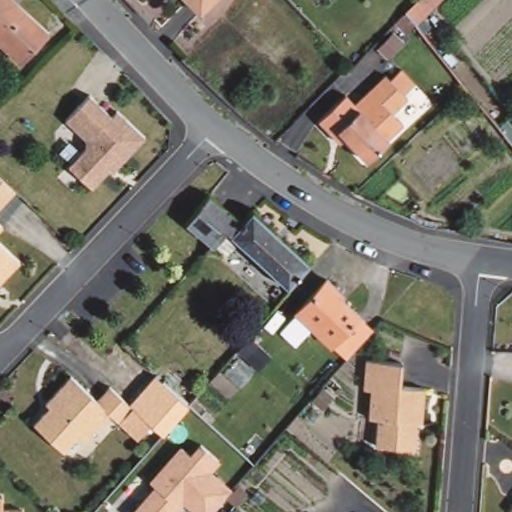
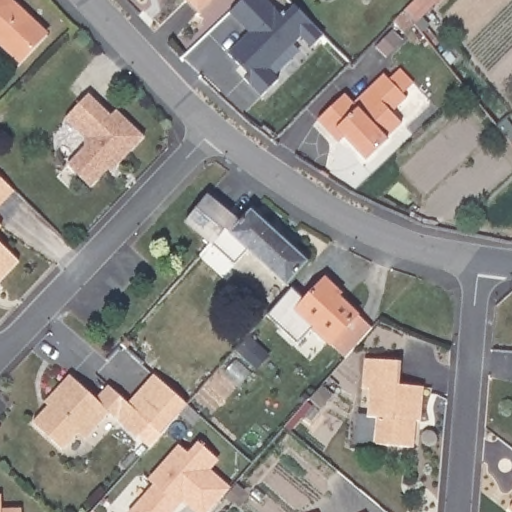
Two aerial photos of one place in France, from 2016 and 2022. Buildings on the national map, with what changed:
unchanged [(12,0),(46,32),(20,59),(0,40),(0,0),(12,0)]
unchanged [(189,0),(212,0),(200,12),(189,0)]
new [(250,34),(230,14),(244,0),(266,0),(284,19),(296,7),(312,25),(325,37),(312,50),(302,39),(269,71),(280,82),(262,98),(245,80),(237,72),(242,68),(229,55),(250,34)]
unchanged [(422,16),(413,7),(420,0),(429,0),(432,5),(422,16)]
unchanged [(335,140),(320,124),(336,109),(343,117),(384,76),(388,80),(400,70),(413,84),(403,95),(407,99),(392,113),(403,125),(388,139),(391,142),(370,164),(346,140),(341,145),(335,140)]
unchanged [(104,167),(87,186),(64,164),(82,145),(81,137),(62,117),(85,92),(107,114),(113,109),(141,136),(115,163),(107,171),(104,167)]
unchanged [(228,256),(227,258),(210,243),(185,221),(207,194),(241,221),(251,210),(308,261),(287,284),(254,254),(241,267),(228,256)]
unchanged [(17,257),(0,274),(0,241),(17,257)]
unchanged [(342,292),(338,296),(357,313),(331,342),(296,310),(326,277),(342,292)]
unchanged [(415,447),(376,445),(377,418),(368,417),(370,389),(362,388),(365,360),(401,362),(399,385),(423,387),(421,421),(412,420),(411,428),(416,433),(415,447)]
unchanged [(167,365),(197,392),(188,403),(158,376),(167,365)]
unchanged [(60,450),(31,423),(40,412),(46,406),(71,378),(97,402),(110,388),(132,410),(119,424),(110,416),(97,430),(86,442),(76,432),(60,450)]
unchanged [(155,484),(149,478),(179,445),(189,452),(199,441),(221,460),(212,471),(232,487),(210,512),(195,512),(182,502),(173,512),(133,512),(155,484)]
unchanged [(21,507),(21,512),(0,512),(0,508),(21,507)]

